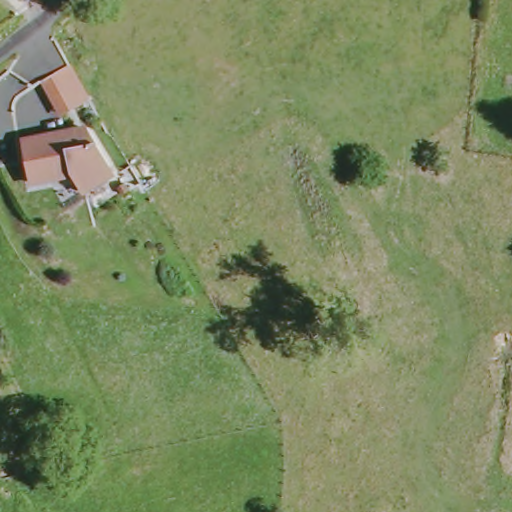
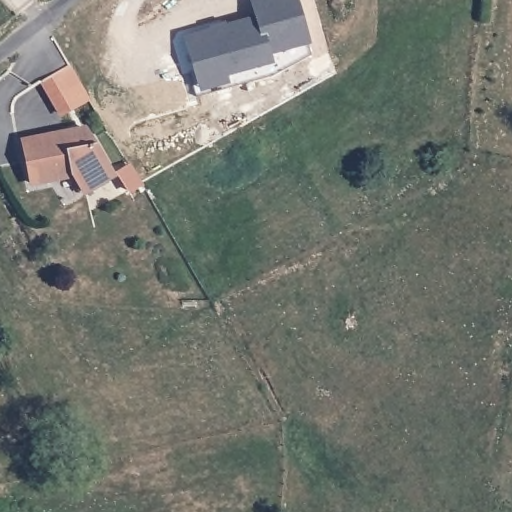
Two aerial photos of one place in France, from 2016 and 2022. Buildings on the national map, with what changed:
new [(271,55),(273,62),(224,75),(221,65),(196,72),(186,35),(256,16),(252,0),(299,0),(310,43),(271,55)]
unchanged [(88,100),(62,118),(39,84),(68,67),(88,100)]
unchanged [(111,175),(85,191),(74,175),(30,183),(21,140),(82,128),(111,175)]

